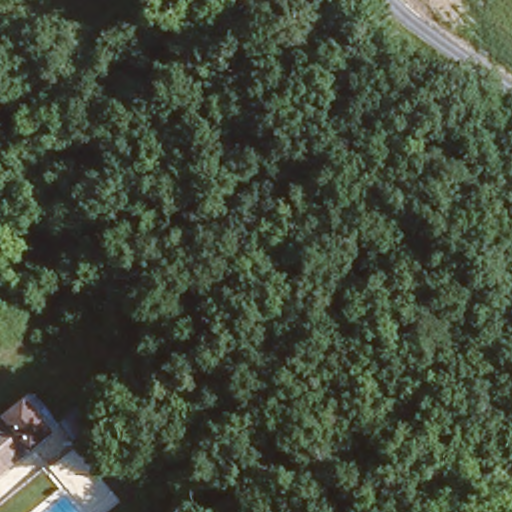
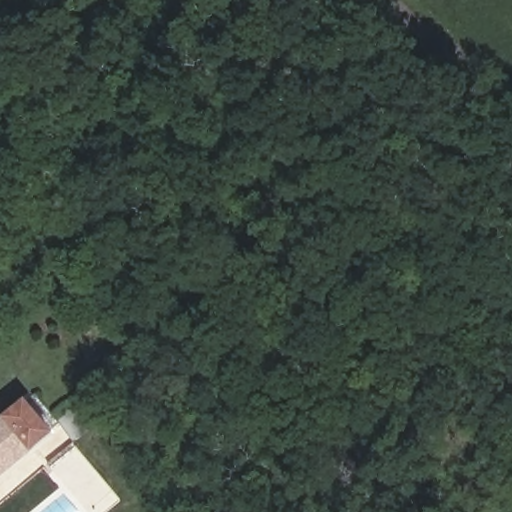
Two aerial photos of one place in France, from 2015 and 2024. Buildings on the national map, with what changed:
unchanged [(52,422),(0,468),(0,413),(23,392),(52,422)]

